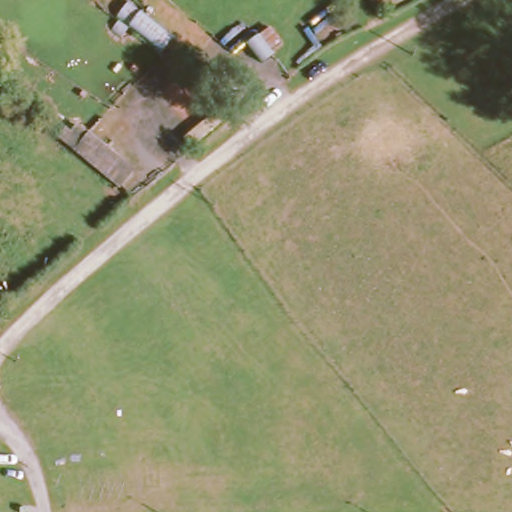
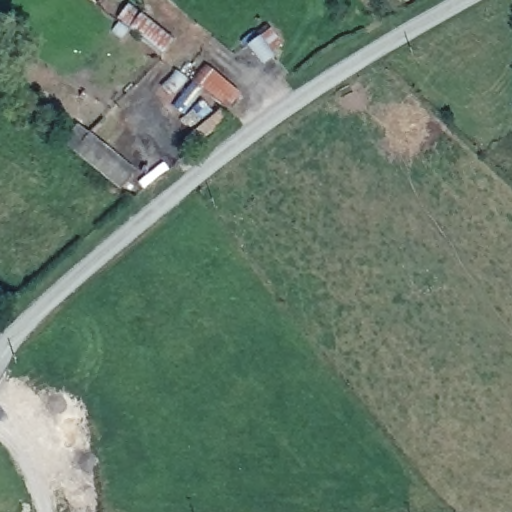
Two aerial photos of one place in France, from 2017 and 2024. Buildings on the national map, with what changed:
unchanged [(120,15),(129,4),(175,37),(164,51),(120,15)]
unchanged [(272,47),(260,34),(270,24),(284,41),(272,47)]
unchanged [(207,63),(229,80),(212,99),(191,81),(207,63)]
unchanged [(183,135),(219,107),(229,116),(194,145),(183,135)]
unchanged [(132,170),(117,189),(58,138),(74,118),(132,170)]

